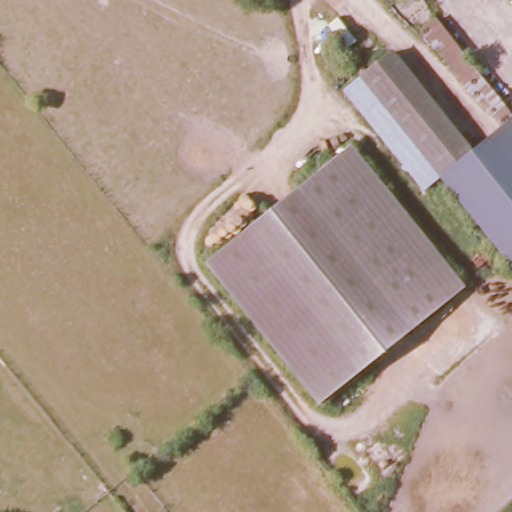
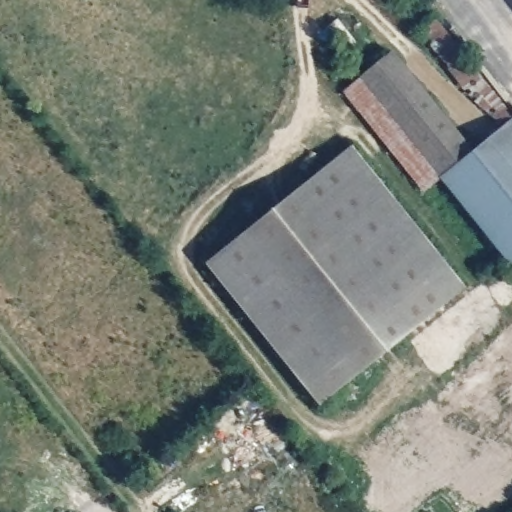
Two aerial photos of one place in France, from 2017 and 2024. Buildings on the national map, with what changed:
unchanged [(437,180),(436,179),(360,82),(392,56),(472,153),(440,178),(437,180)]
unchanged [(436,179),(420,192),(345,94),(360,82),(436,179)]
unchanged [(440,178),(472,153),(512,120),(512,268),(440,178)]
unchanged [(317,404),(203,262),(349,145),(462,288),(317,404)]

